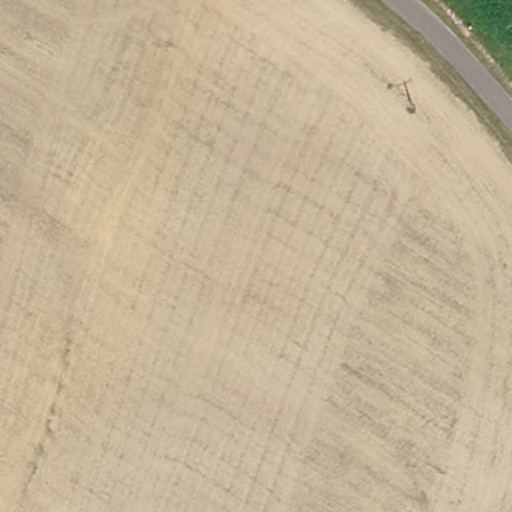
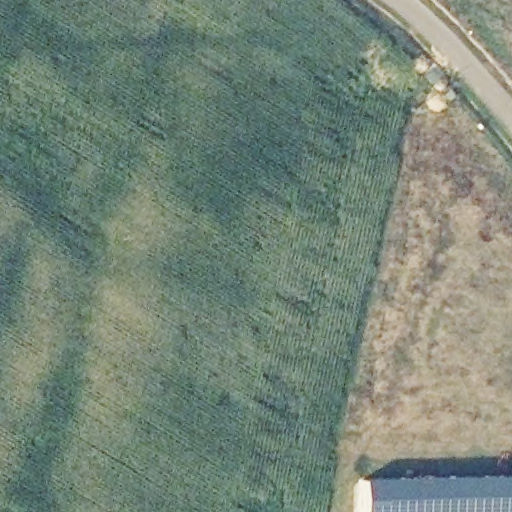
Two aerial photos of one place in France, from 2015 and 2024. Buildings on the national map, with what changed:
new [(512,474),(512,512),(360,512),(359,479),(512,474)]

